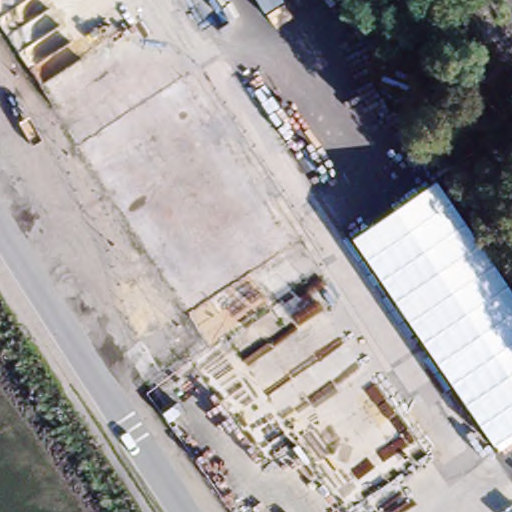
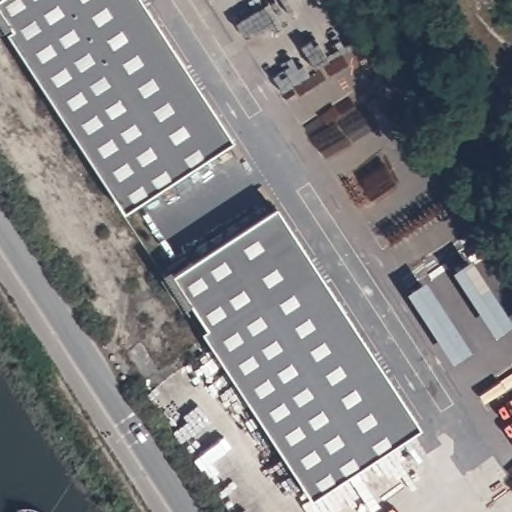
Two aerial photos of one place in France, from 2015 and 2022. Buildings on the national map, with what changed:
new [(227,138),(125,205),(6,26),(12,22),(0,4),(0,0),(137,0),(227,138)]
demolished [(287,5),(266,18),(254,0),(284,0),(287,5)]
demolished [(78,145),(181,77),(291,244),(250,272),(270,302),(302,280),(390,410),(393,410),(424,455),(345,511),(296,443),(265,465),(192,360),(210,347),(205,339),(78,145)]
demolished [(390,202),(366,168),(388,154),(366,120),(387,106),(407,137),(419,129),(440,164),(443,169),(390,202)]
new [(416,426),(314,493),(205,326),(210,322),(175,270),(271,205),(416,426)]

